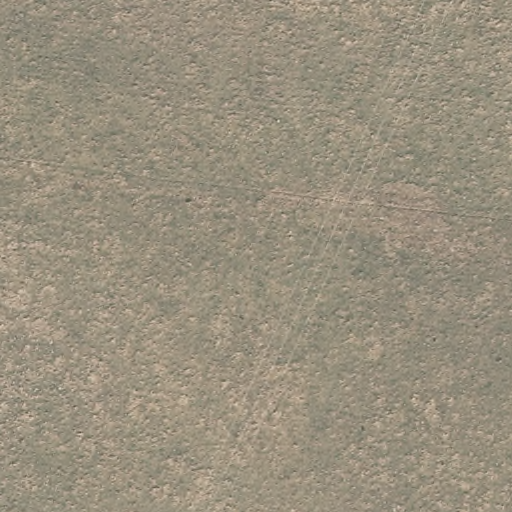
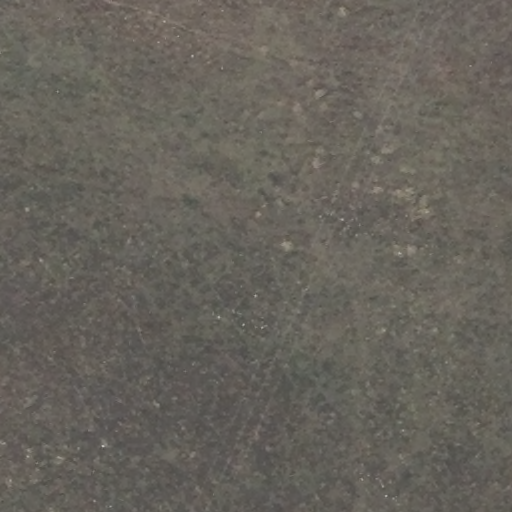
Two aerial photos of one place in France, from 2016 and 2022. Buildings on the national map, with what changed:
[]

